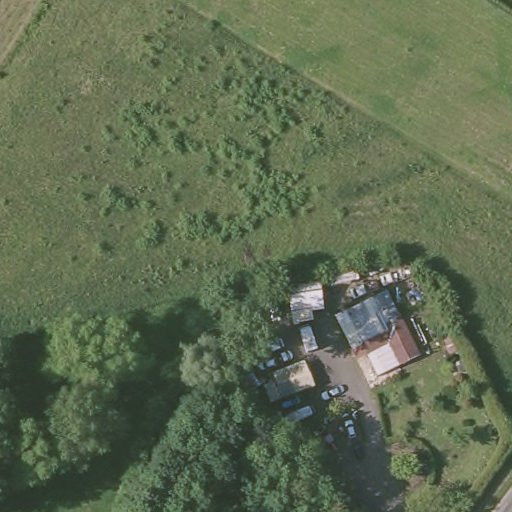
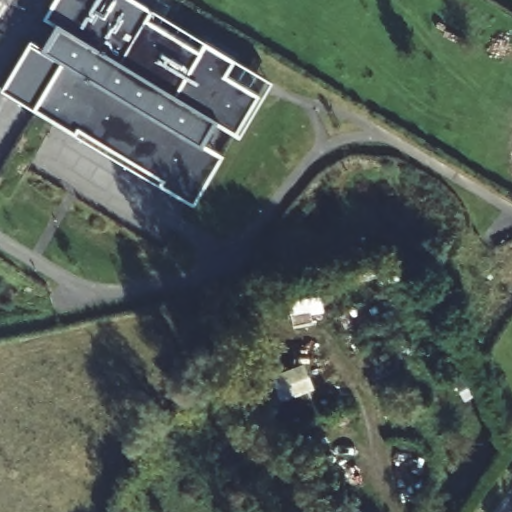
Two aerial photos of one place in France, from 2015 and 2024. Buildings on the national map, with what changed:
new [(151,5),(145,15),(198,45),(203,36),(232,54),(224,69),(256,89),(234,126),(211,115),(201,134),(203,136),(203,138),(221,148),(193,198),(158,178),(161,172),(78,125),(75,130),(33,106),(60,57),(43,47),(58,22),(42,13),(50,0),(141,0),(151,5)]
unchanged [(286,284),(321,279),(327,312),(293,317),(286,284)]
unchanged [(361,342),(353,347),(338,314),(389,288),(422,355),(378,378),(361,342)]
unchanged [(316,386),(271,402),(266,387),(276,382),(266,362),(299,348),(316,386)]

